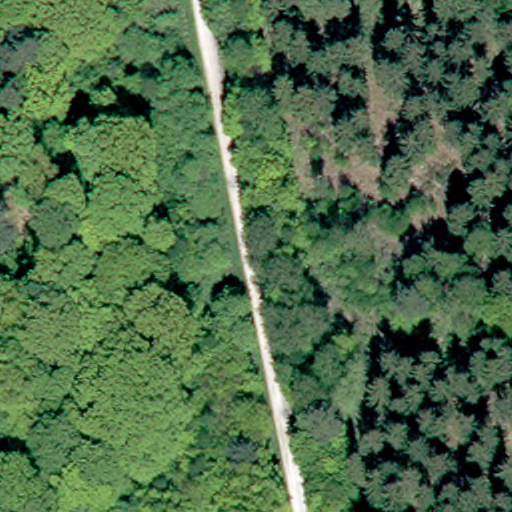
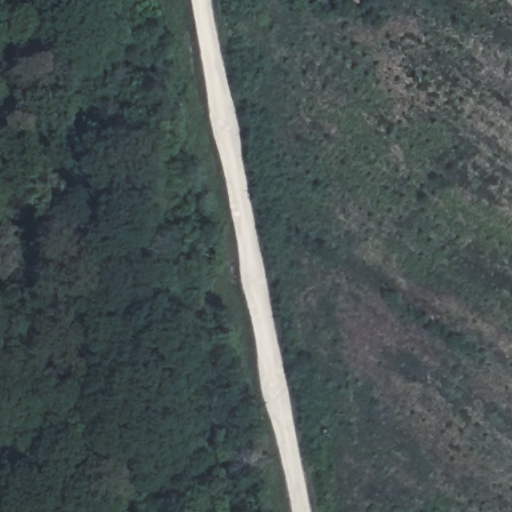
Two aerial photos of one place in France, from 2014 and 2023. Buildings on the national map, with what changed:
[]

